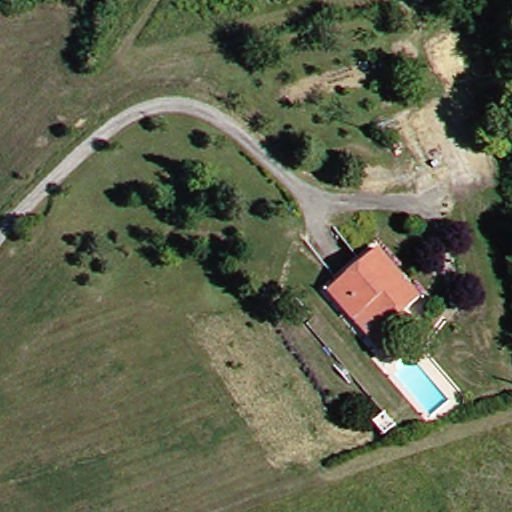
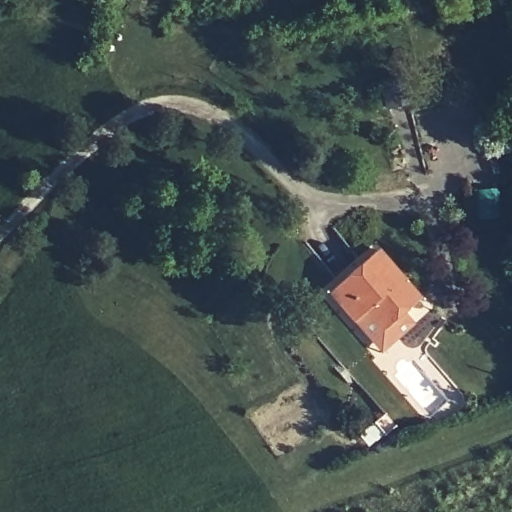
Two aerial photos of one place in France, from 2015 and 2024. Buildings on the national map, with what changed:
unchanged [(384,357),(360,326),(350,309),(334,293),(388,247),(430,300),(416,311),(424,324),(384,357)]

